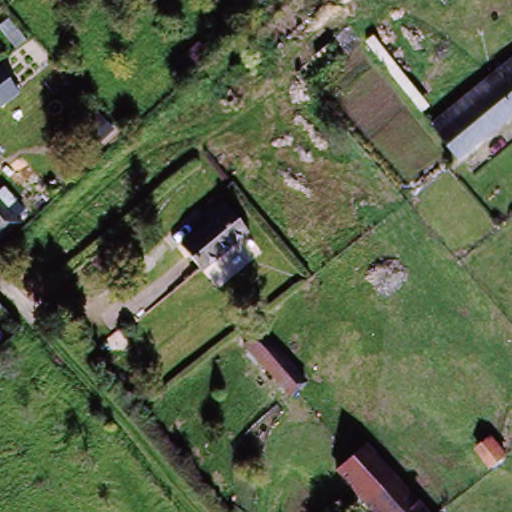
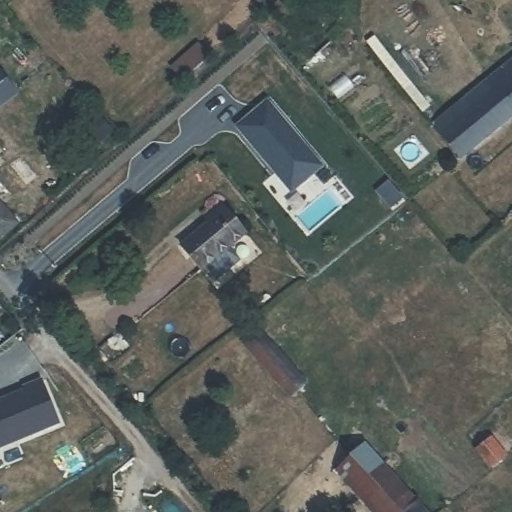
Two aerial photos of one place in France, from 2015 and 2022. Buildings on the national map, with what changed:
unchanged [(206,33),(215,46),(184,70),(174,56),(206,33)]
demolished [(347,33),(360,49),(340,66),(326,50),(347,33)]
new [(430,108),(422,114),(366,46),(374,40),(430,108)]
unchanged [(512,59),(512,115),(459,159),(431,126),(512,59)]
new [(25,91),(0,112),(0,72),(5,68),(25,91)]
new [(323,166),(294,192),(239,128),(269,102),(323,166)]
unchanged [(42,140),(60,164),(21,195),(3,170),(42,140)]
unchanged [(185,249),(213,225),(207,217),(226,202),(249,233),(202,271),(185,249)]
unchanged [(0,228),(0,207),(10,220),(0,228)]
unchanged [(260,329),(298,378),(280,392),(240,344),(260,329)]
new [(23,388),(40,381),(58,422),(0,448),(0,401),(25,391),(23,388)]
unchanged [(488,436),(505,461),(492,470),(475,445),(488,436)]
unchanged [(355,448),(410,512),(373,512),(334,465),(355,448)]

